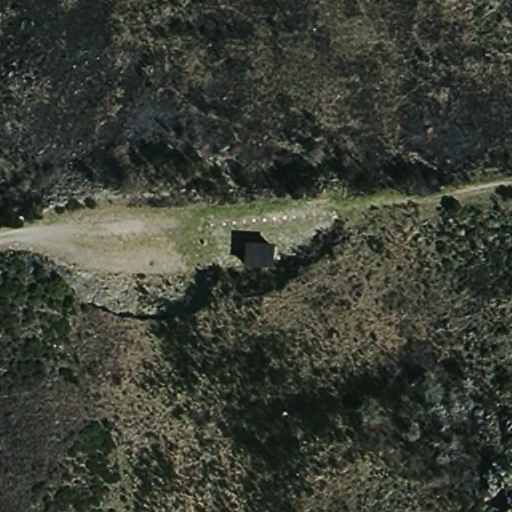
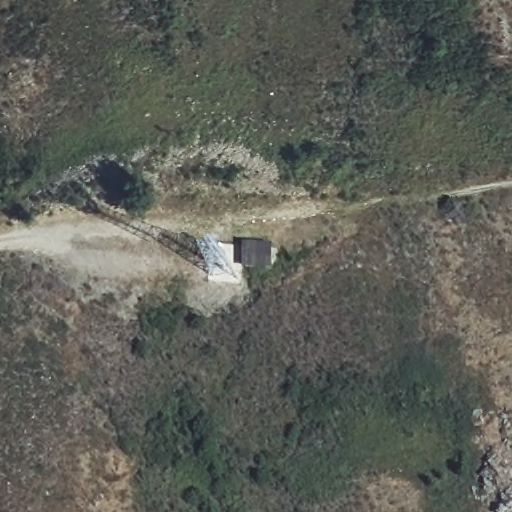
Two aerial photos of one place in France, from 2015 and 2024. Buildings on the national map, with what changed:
unchanged [(277,242),(276,263),(251,261),(250,241),(277,242)]

